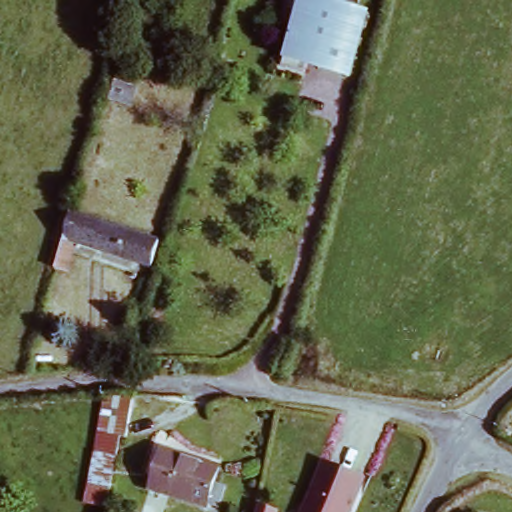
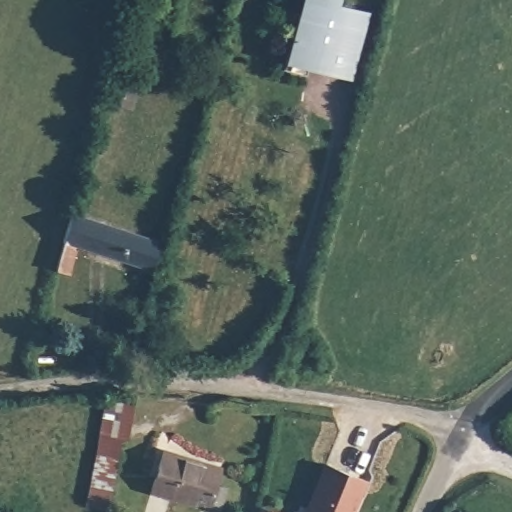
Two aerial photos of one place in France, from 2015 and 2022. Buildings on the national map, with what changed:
unchanged [(296,29),(303,0),(336,0),(335,2),(364,11),(348,76),(317,67),(320,61),(308,58),(303,75),(282,67),(290,30),(296,29)]
unchanged [(139,90),(135,113),(113,106),(117,86),(139,90)]
unchanged [(154,235),(145,266),(80,249),(72,278),(50,273),(67,210),(154,235)]
unchanged [(78,479),(114,395),(145,395),(130,430),(124,429),(97,490),(78,479)]
unchanged [(157,451),(212,463),(202,503),(148,491),(157,451)]
unchanged [(347,512),(301,512),(322,463),(362,480),(347,512)]

